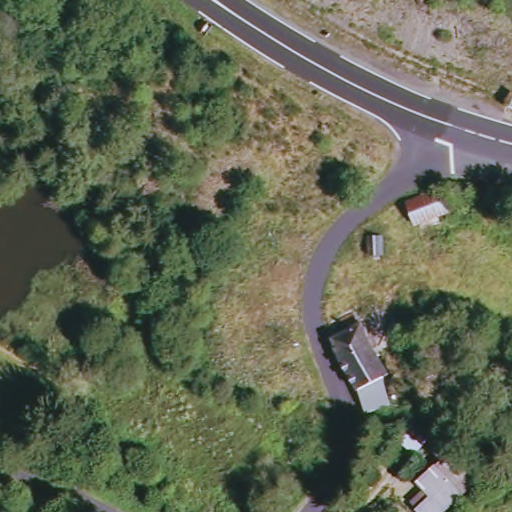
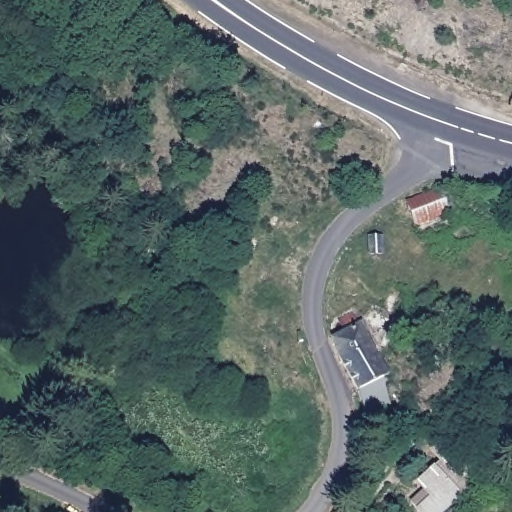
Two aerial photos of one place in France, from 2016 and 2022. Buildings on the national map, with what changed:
unchanged [(442,211),(436,214),(407,224),(395,196),(432,184),(442,211)]
unchanged [(371,256),(372,239),(383,238),(383,257),(371,256)]
unchanged [(362,413),(351,389),(325,334),(342,329),(337,317),(353,312),(357,317),(384,371),(368,379),(380,403),(362,413)]
unchanged [(480,468),(442,509),(427,496),(440,483),(427,470),(453,442),(480,468)]

